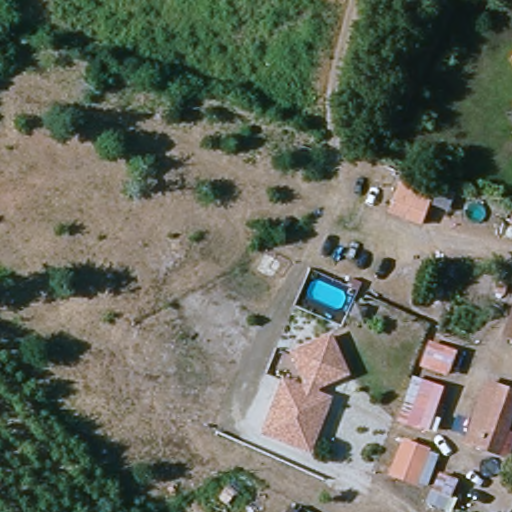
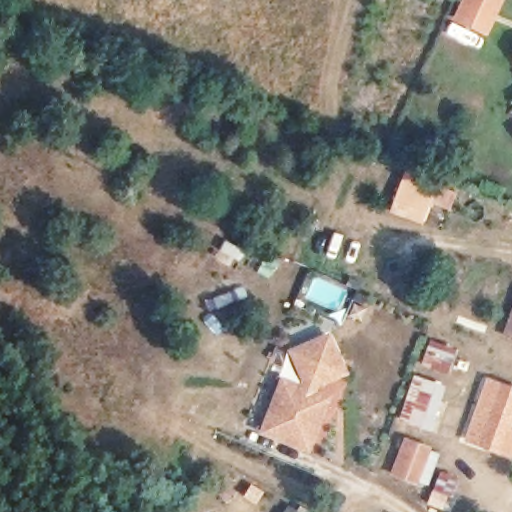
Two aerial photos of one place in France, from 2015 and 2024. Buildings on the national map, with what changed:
new [(489,37),(453,20),(463,0),(507,0),(489,37)]
unchanged [(468,200),(461,220),(408,202),(415,182),(468,200)]
unchanged [(262,441),(268,427),(288,377),(307,384),(310,377),(297,348),(334,332),(350,368),(321,381),(318,388),(333,394),(313,445),(307,459),(262,441)]
unchanged [(448,374),(423,365),(431,342),(456,352),(448,374)]
unchanged [(429,429),(401,420),(415,378),(443,388),(429,429)]
unchanged [(507,432),(512,434),(512,445),(508,456),(467,441),(488,382),(512,390),(512,419),(507,432)]
unchanged [(428,489),(418,486),(417,488),(384,476),(394,446),(404,450),(406,445),(430,453),(429,457),(438,460),(428,489)]
unchanged [(455,503),(452,512),(445,512),(429,506),(434,494),(435,495),(441,480),(457,485),(450,502),(455,503)]

